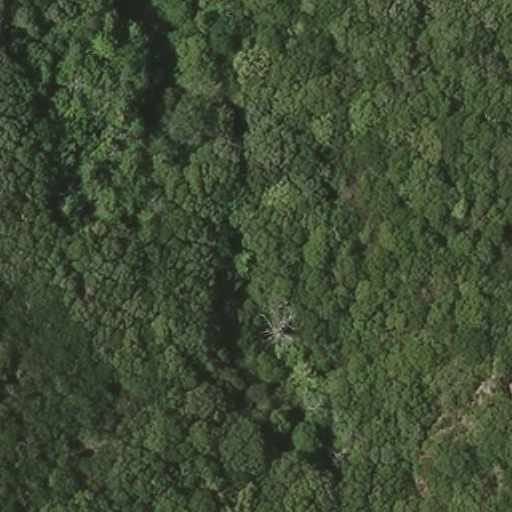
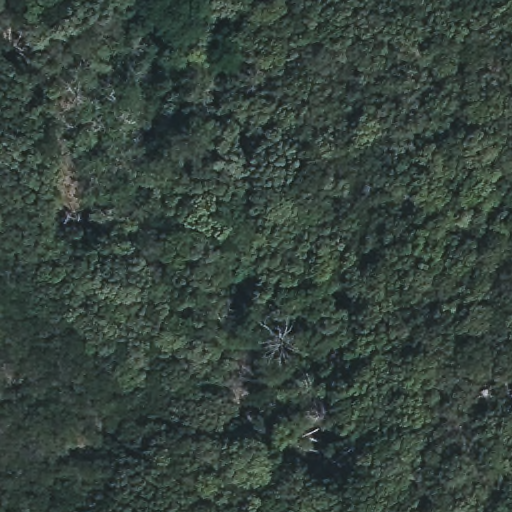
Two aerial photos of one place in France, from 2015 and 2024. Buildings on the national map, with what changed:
[]

